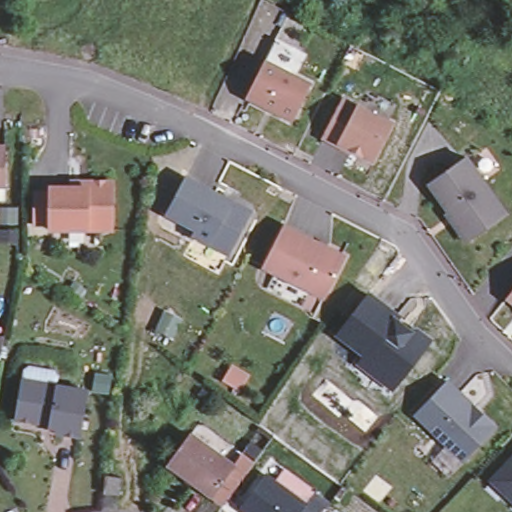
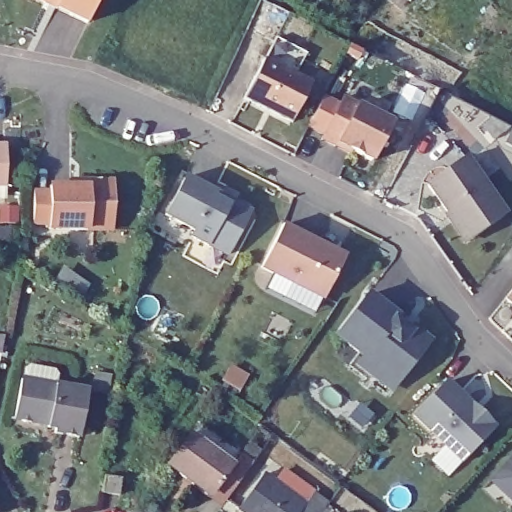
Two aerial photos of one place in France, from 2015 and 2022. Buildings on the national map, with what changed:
new [(87,23),(39,0),(98,0),(87,23)]
unchanged [(247,100),(265,63),(312,87),(292,123),(247,100)]
unchanged [(338,149),(322,141),(344,101),(392,125),(373,162),(352,152),(350,155),(338,149)]
unchanged [(0,140),(12,140),(12,182),(12,191),(0,191),(0,140)]
unchanged [(445,215),(447,214),(429,187),(466,160),(506,216),(470,241),(465,244),(445,215)]
unchanged [(247,217),(227,256),(191,237),(194,232),(165,216),(185,179),(215,195),(234,205),(245,211),(247,217)]
unchanged [(34,192),(50,192),(50,187),(70,187),(70,182),(94,182),(105,182),(112,187),(111,231),(49,229),(49,224),(33,224),(34,192)]
unchanged [(0,223),(0,207),(17,207),(17,223),(0,223)]
unchanged [(262,263),(283,221),(346,252),(325,295),(262,263)]
unchanged [(0,229),(15,229),(15,240),(0,240),(0,229)]
unchanged [(505,300),(512,292),(512,305),(505,300)]
unchanged [(376,377),(360,365),(365,357),(337,336),(368,297),(397,318),(416,333),(429,343),(399,383),(393,391),(376,377)]
unchanged [(1,349),(0,349),(0,333),(4,333),(1,349)]
unchanged [(110,395),(95,392),(97,373),(113,376),(110,395)]
unchanged [(13,417),(20,378),(87,390),(79,435),(52,431),(54,427),(47,426),(47,423),(36,422),(13,417)]
unchanged [(414,416),(445,382),(494,428),(462,462),(414,416)]
unchanged [(194,478),(192,482),(167,462),(189,432),(232,463),(235,458),(250,438),(262,447),(247,467),(235,482),(222,501),(210,492),(194,478)]
unchanged [(503,494),(490,482),(499,472),(512,458),(512,503),(503,494)]
unchanged [(267,467),(280,477),(290,463),(319,486),(332,497),(328,502),(340,512),(258,512),(243,501),(267,467)]
unchanged [(118,493),(103,490),(106,473),(122,477),(118,493)]

